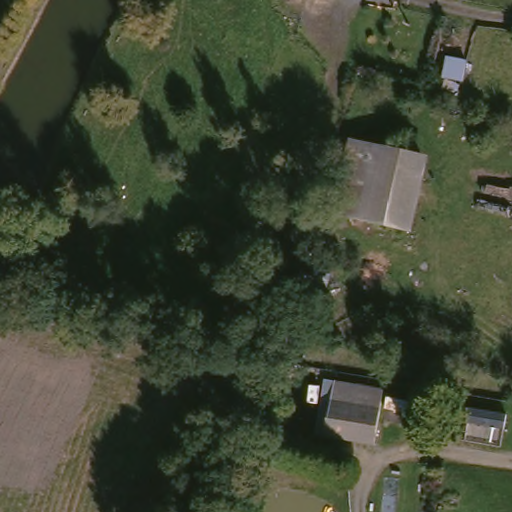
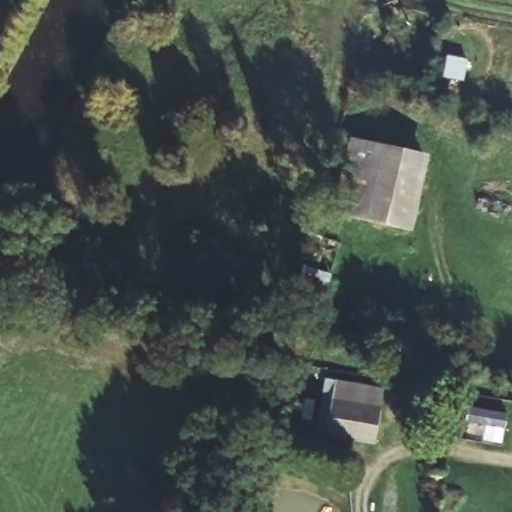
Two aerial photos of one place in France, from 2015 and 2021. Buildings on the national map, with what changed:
unchanged [(396,145),(379,219),(348,212),(364,138),(396,145)]
unchanged [(434,152),(417,227),(379,219),(396,145),(434,152)]
unchanged [(307,332),(287,327),(293,307),(313,312),(307,332)]
unchanged [(390,386),(379,444),(318,432),(330,376),(390,386)]
unchanged [(507,413),(505,429),(465,422),(467,407),(507,413)]

